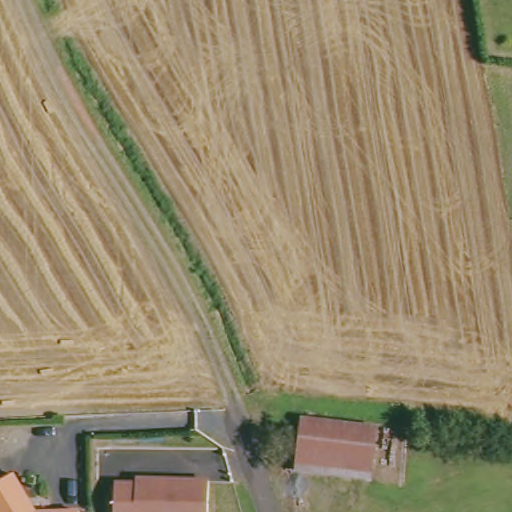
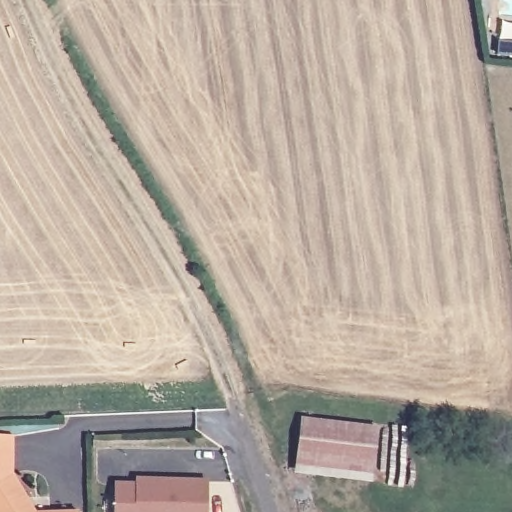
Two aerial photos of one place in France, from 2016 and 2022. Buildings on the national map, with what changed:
unchanged [(297,415),(372,423),(366,476),(292,467),(297,415)]
unchanged [(30,506),(24,510),(26,512),(0,512),(0,478),(9,472),(30,506)]
unchanged [(138,481),(158,480),(158,483),(168,483),(167,480),(201,478),(202,512),(118,512),(118,487),(139,486),(138,481)]
unchanged [(77,511),(77,512),(48,512),(48,511),(77,511)]

